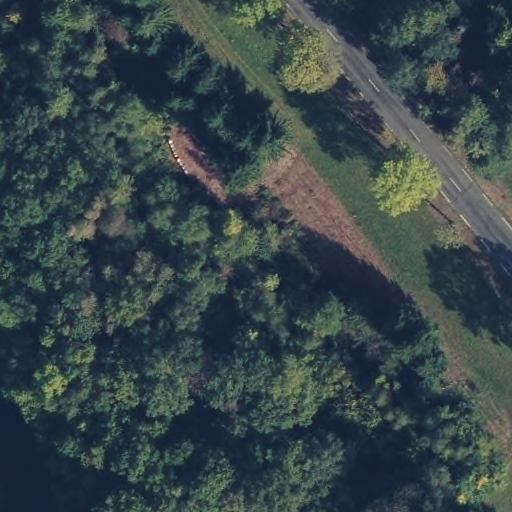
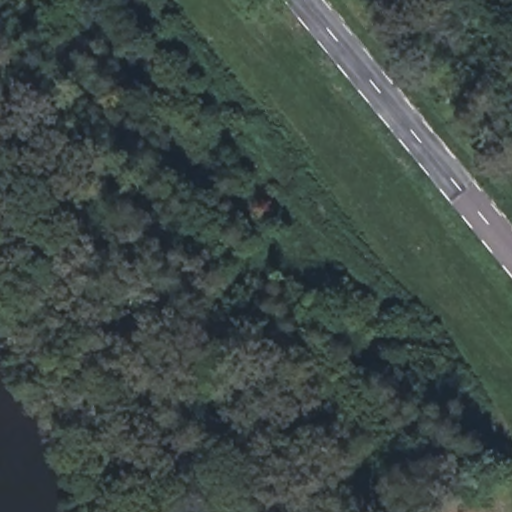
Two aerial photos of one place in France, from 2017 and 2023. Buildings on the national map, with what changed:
unchanged [(439,436),(463,462),(448,477),(425,451),(439,436)]

